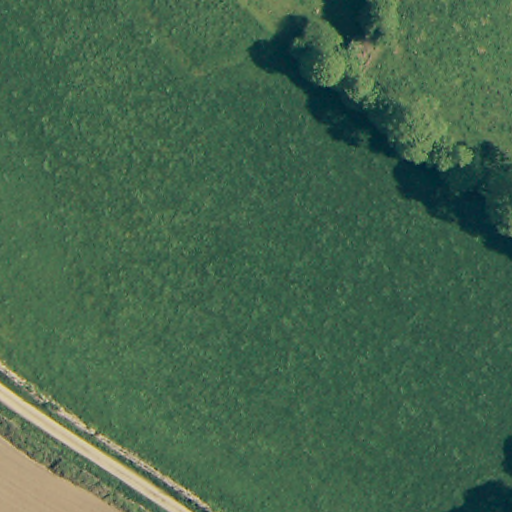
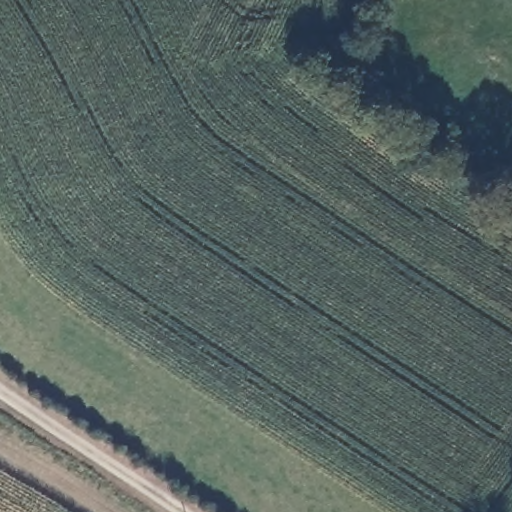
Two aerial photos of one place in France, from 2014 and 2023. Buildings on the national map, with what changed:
[]

